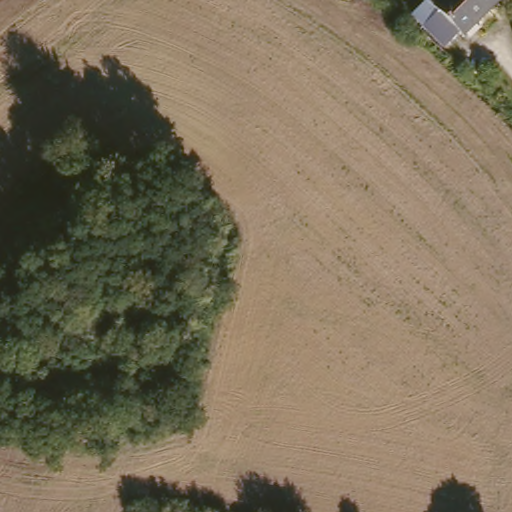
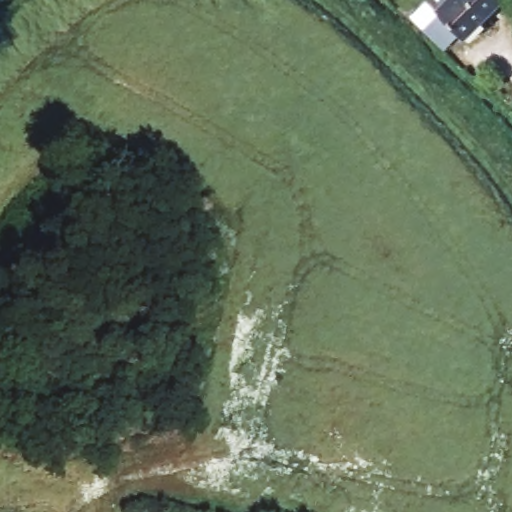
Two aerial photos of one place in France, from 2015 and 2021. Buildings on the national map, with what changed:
unchanged [(465,33),(438,4),(442,0),(500,0),(465,33)]

